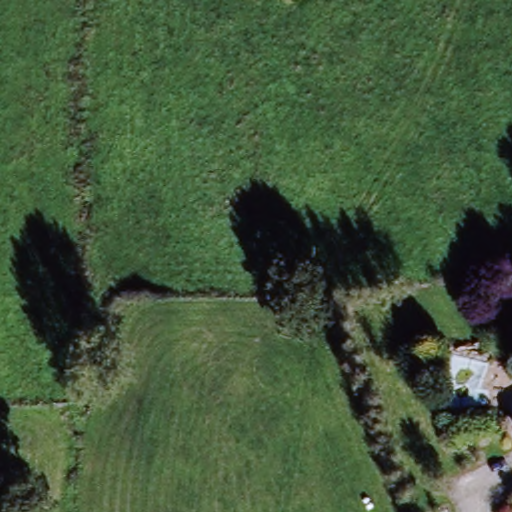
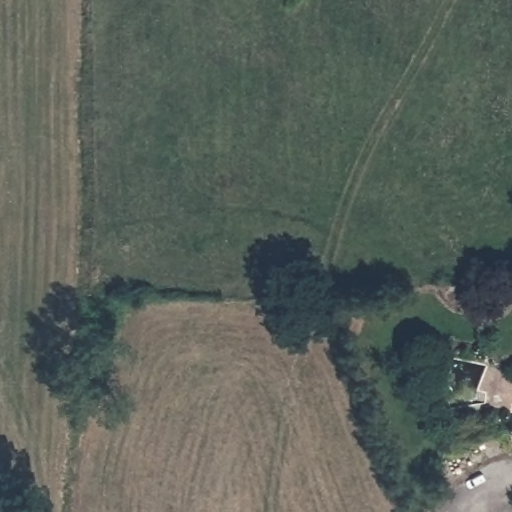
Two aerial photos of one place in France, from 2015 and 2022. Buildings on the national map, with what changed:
unchanged [(512,429),(512,431),(511,430),(512,429)]

